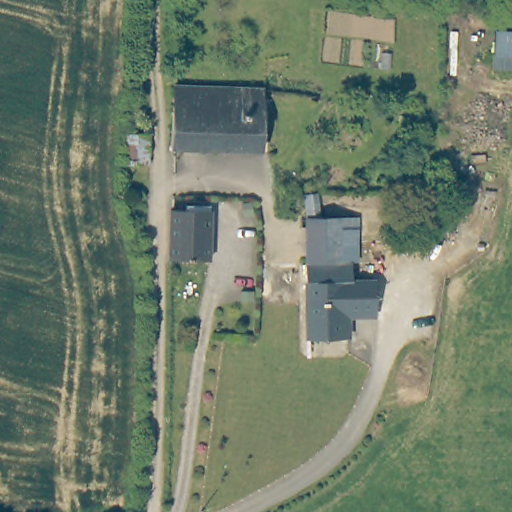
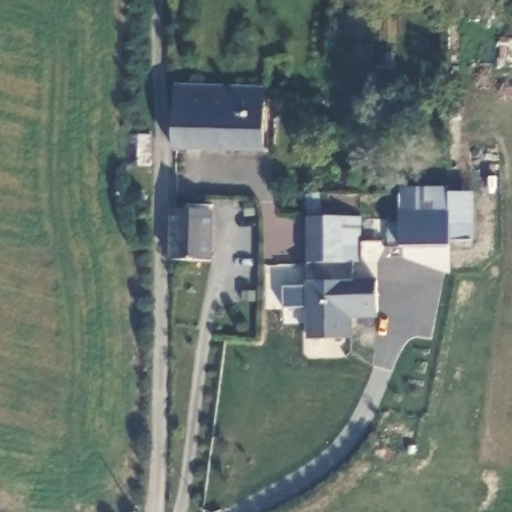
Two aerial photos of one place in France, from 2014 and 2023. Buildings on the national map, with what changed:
unchanged [(260,151),(174,152),(173,87),(185,87),(204,86),(260,86),(260,151)]
new [(400,187),(450,187),(450,192),(476,192),(475,240),(451,240),(450,246),(399,247),(400,187)]
unchanged [(172,216),(211,216),(210,266),(171,266),(172,216)]
unchanged [(306,221),(352,222),(358,222),(358,226),(358,235),(358,245),(358,266),(339,267),(306,267),(306,221)]
unchanged [(352,267),(352,285),(376,285),(376,317),(350,317),(350,313),(343,313),(344,342),(339,342),(306,342),(306,267),(339,267),(352,267)]
demolished [(444,313),(466,317),(463,340),(441,336),(444,313)]

